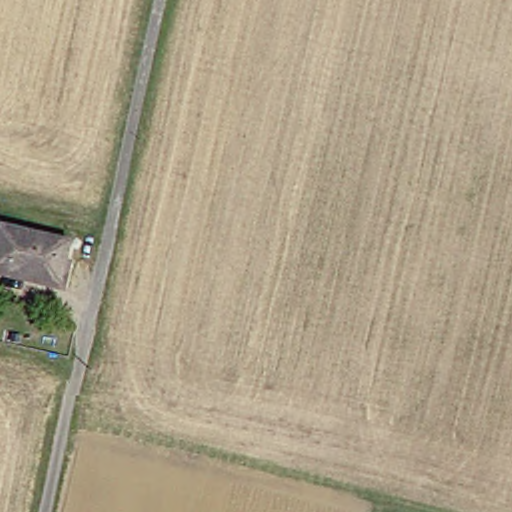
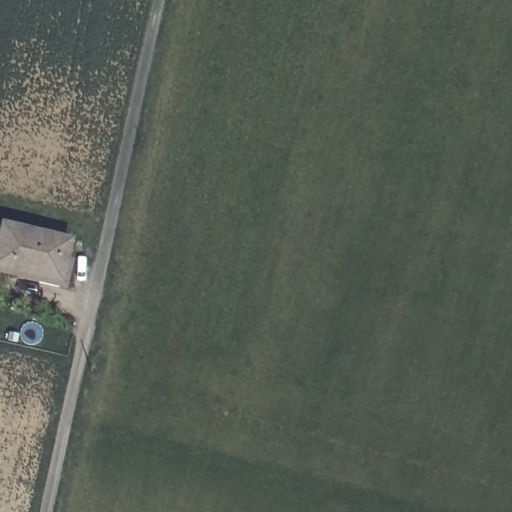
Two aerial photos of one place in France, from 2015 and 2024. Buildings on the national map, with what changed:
unchanged [(0,241),(5,222),(71,238),(61,282),(0,268),(0,241)]

